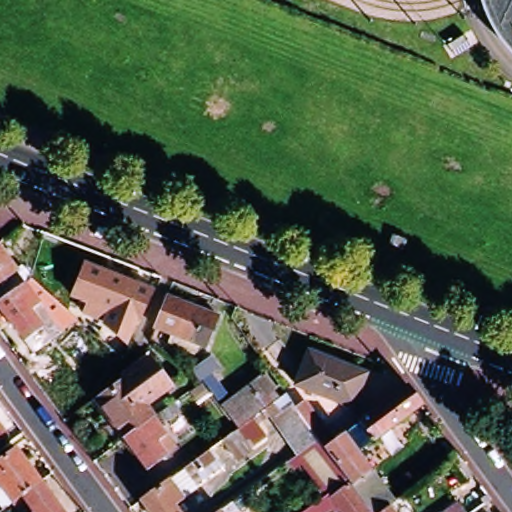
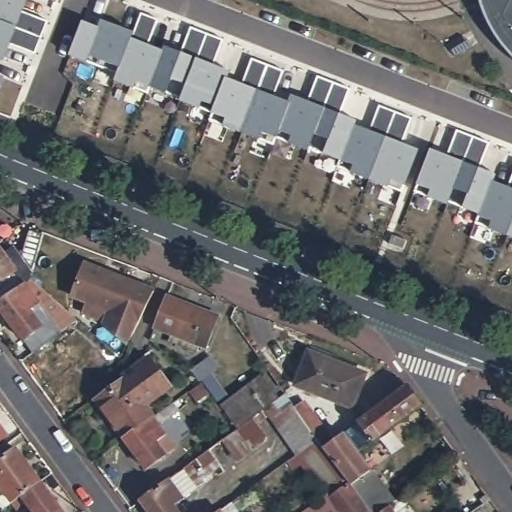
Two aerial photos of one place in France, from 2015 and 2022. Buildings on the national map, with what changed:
new [(22,9),(47,19),(35,51),(9,41),(2,58),(0,57),(0,0),(25,0),(22,9)]
unchanged [(502,40),(496,32),(490,24),(485,14),(482,7),(480,0),(481,0),(512,0),(512,52),(512,51),(502,40)]
new [(242,82),(252,57),(284,70),(274,95),(289,101),(292,94),(307,101),(317,75),(350,87),(340,113),(356,119),(355,124),(370,130),(379,104),(412,117),(402,142),(419,148),(402,191),(337,166),(340,159),(309,147),(309,149),(277,137),(274,144),(210,119),(212,112),(180,100),(181,98),(150,86),(147,93),(115,80),(117,73),(69,55),(82,21),(98,27),(101,20),(133,32),(141,12),(157,19),(148,44),(163,50),(165,45),(181,51),(190,26),(223,39),(214,64),(230,70),(227,77),(242,82)]
new [(4,75),(0,85),(0,74),(4,75)]
new [(479,213),(447,201),(447,204),(414,191),(430,148),(446,155),(456,129),(489,142),(479,168),(495,174),(492,180),(507,186),(512,174),(512,237),(475,223),(479,213)]
demolished [(410,249),(396,244),(400,234),(414,239),(410,249)]
demolished [(420,259),(410,255),(414,242),(425,247),(420,259)]
unchanged [(0,285),(0,253),(5,260),(12,256),(21,269),(15,273),(0,285)]
unchanged [(154,293),(135,331),(128,347),(105,327),(106,325),(84,316),(89,304),(73,297),(85,266),(123,281),(154,293)]
unchanged [(15,273),(45,313),(50,309),(57,318),(22,343),(0,313),(0,285),(15,273)]
unchanged [(219,314),(206,347),(200,344),(198,350),(174,341),(175,336),(155,327),(168,294),(219,314)]
unchanged [(352,406),(297,383),(309,351),(365,373),(352,406)]
unchanged [(220,402),(195,369),(212,357),(221,370),(213,376),(229,396),(220,402)]
unchanged [(150,358),(171,387),(145,406),(154,418),(124,440),(95,399),(105,391),(150,358)]
unchanged [(289,393),(282,398),(280,396),(242,424),(227,403),(265,375),(279,394),(285,389),(289,393)]
unchanged [(372,470),(374,469),(396,499),(390,504),(378,512),(375,512),(352,481),(350,478),(325,444),(321,438),(299,454),(267,409),(282,398),(289,393),(297,405),(306,399),(334,439),(407,385),(422,405),(358,451),(372,470)]
unchanged [(154,418),(175,402),(181,410),(160,425),(177,447),(145,469),(124,440),(154,418)]
unchanged [(266,436),(250,448),(252,452),(237,463),(230,452),(222,458),(225,463),(219,467),(220,469),(195,487),(184,470),(236,431),(253,419),(266,436)]
unchanged [(5,427),(0,431),(0,420),(5,427)]
unchanged [(15,499),(5,507),(0,500),(0,478),(0,458),(19,444),(44,478),(15,499)]
unchanged [(192,494),(175,507),(179,512),(149,512),(142,501),(178,474),(192,494)]
unchanged [(24,512),(15,499),(44,478),(68,512),(24,512)]
unchanged [(340,512),(330,497),(352,481),(375,512),(340,512)]
unchanged [(325,512),(305,512),(305,511),(319,501),(325,511),(325,512)]
unchanged [(237,512),(220,512),(231,504),(237,512)]
unchanged [(378,512),(390,504),(395,512),(378,512)]
unchanged [(461,512),(446,512),(457,505),(461,512)]

